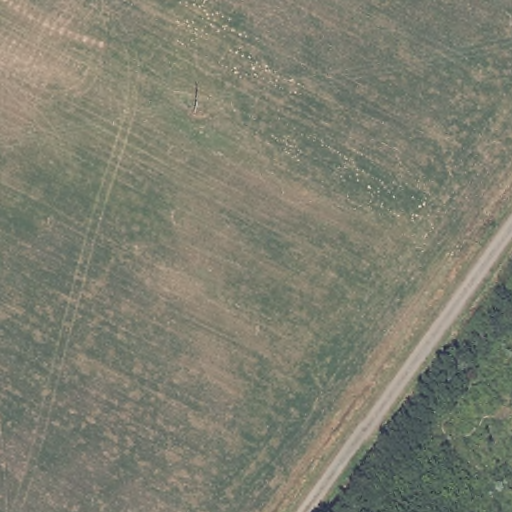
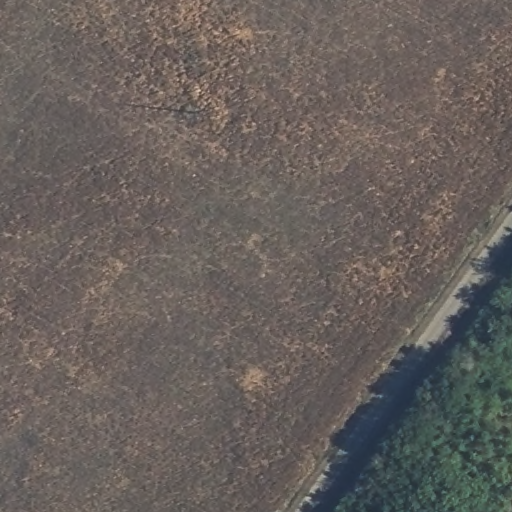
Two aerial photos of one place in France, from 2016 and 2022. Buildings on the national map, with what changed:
[]

